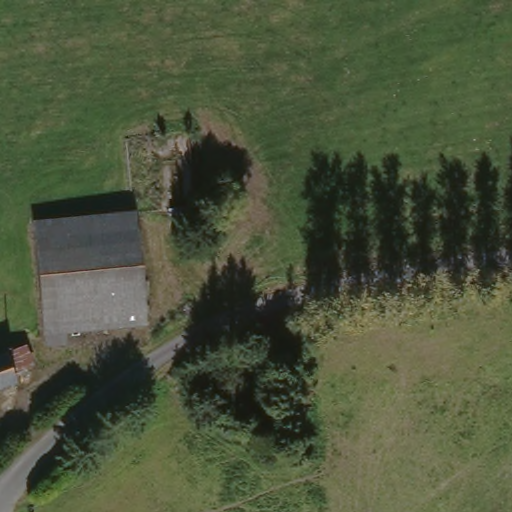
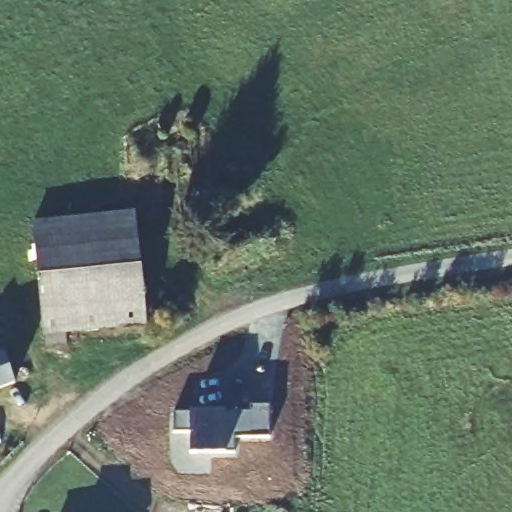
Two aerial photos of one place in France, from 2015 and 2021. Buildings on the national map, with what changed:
unchanged [(140,323),(60,333),(61,345),(38,347),(26,221),(127,210),(128,214),(140,323)]
unchanged [(21,345),(29,366),(6,376),(8,383),(0,386),(0,353),(21,345)]
new [(171,411),(248,410),(248,404),(269,404),(268,436),(233,437),(233,452),(188,452),(188,431),(171,431),(171,411)]

